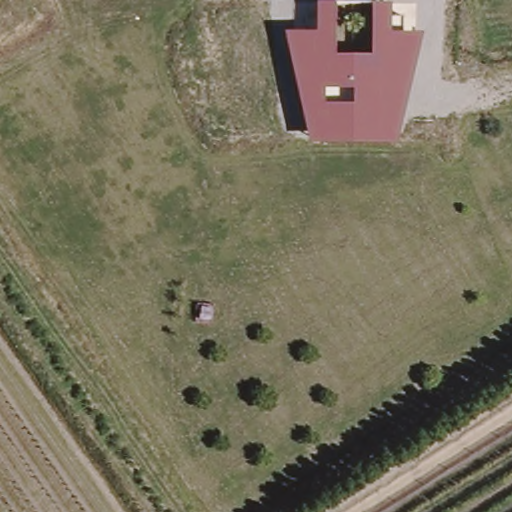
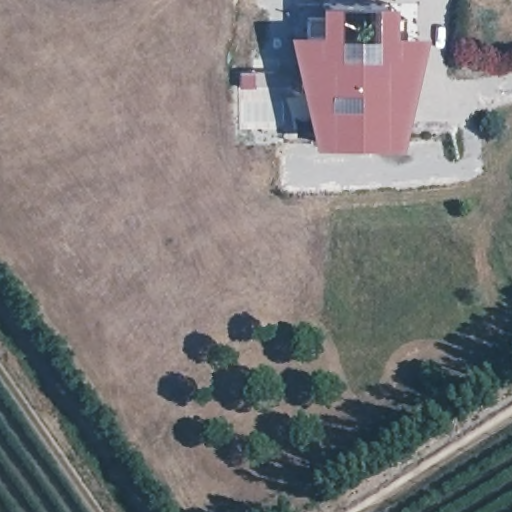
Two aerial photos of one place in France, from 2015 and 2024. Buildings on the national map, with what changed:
unchanged [(309,35),(308,7),(388,6),(390,37),(419,39),(392,140),(313,141),(285,36),(309,35)]

